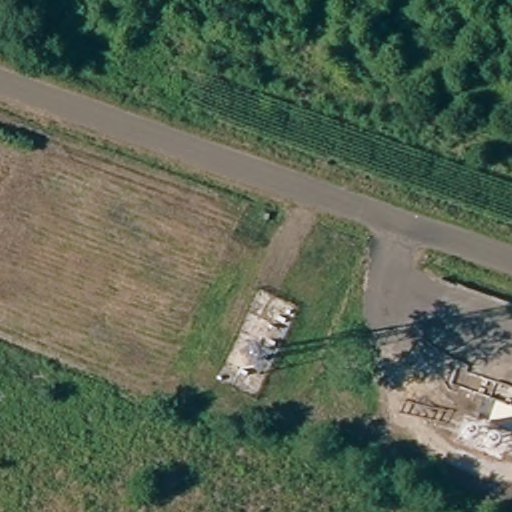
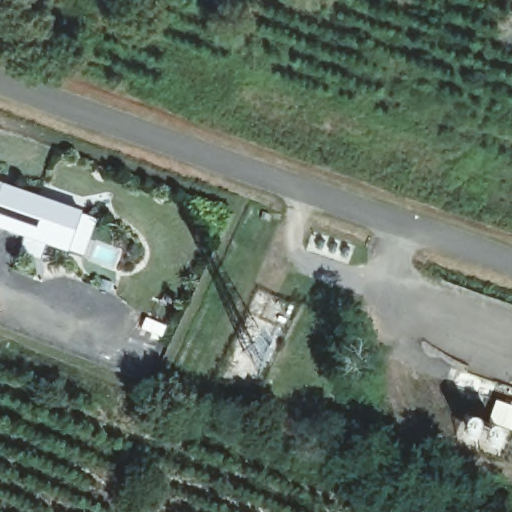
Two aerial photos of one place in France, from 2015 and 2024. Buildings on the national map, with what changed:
new [(0,192),(0,186),(2,187),(0,192)]
new [(82,214),(97,219),(84,256),(69,250),(67,255),(0,232),(0,192),(2,187),(82,214)]
unchanged [(512,406),(512,435),(511,435),(505,448),(469,433),(477,415),(490,418),(496,400),(512,406)]

